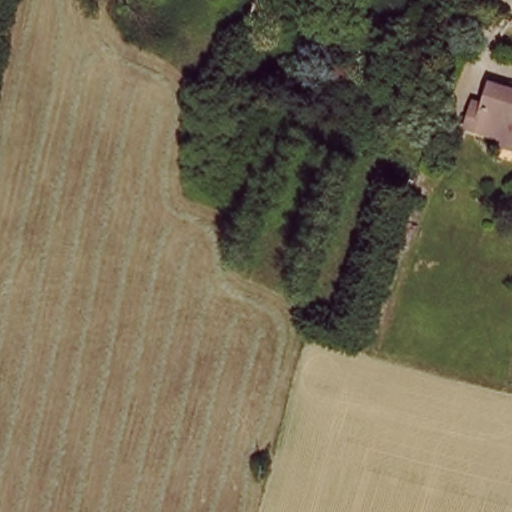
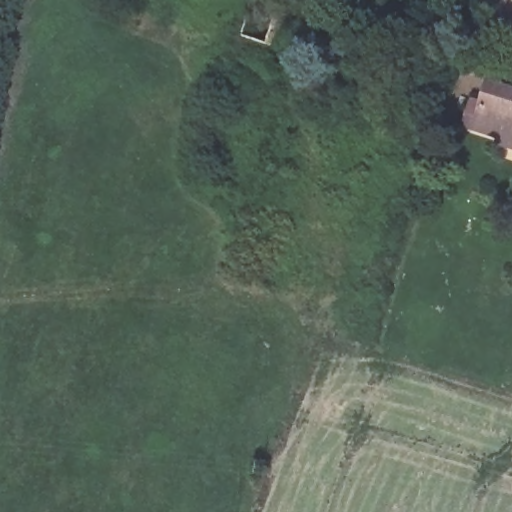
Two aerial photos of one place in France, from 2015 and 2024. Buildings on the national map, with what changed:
unchanged [(367,0),(375,0),(374,3),(367,0)]
unchanged [(512,88),(512,145),(501,141),(502,135),(466,124),(475,101),(484,102),(491,80),(512,88)]

